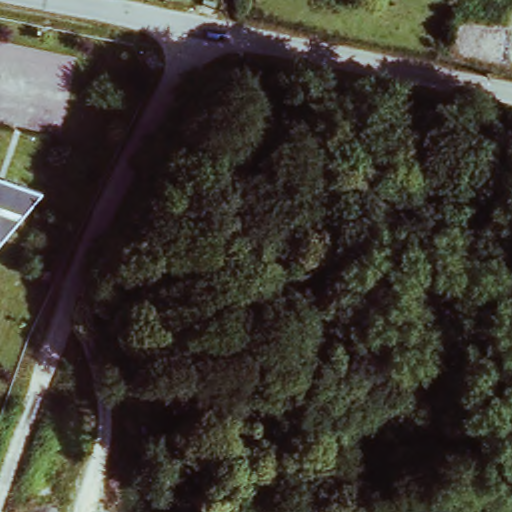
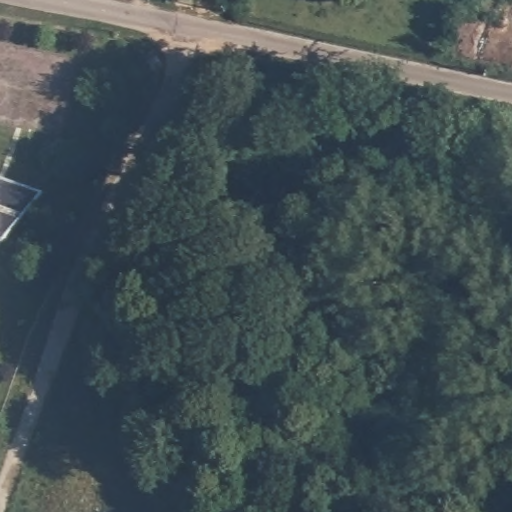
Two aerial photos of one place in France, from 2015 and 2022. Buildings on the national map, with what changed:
unchanged [(3,250),(0,249),(0,178),(45,196),(3,250)]

